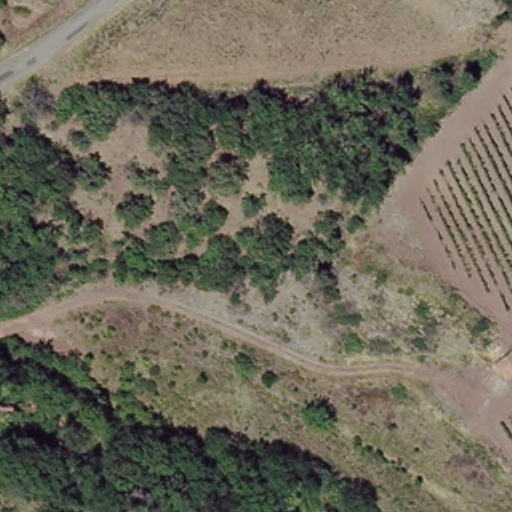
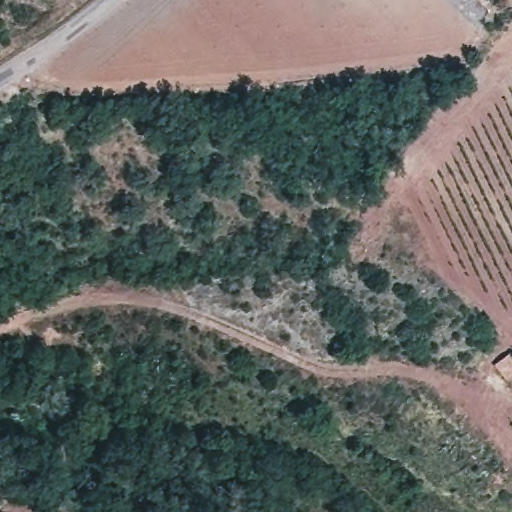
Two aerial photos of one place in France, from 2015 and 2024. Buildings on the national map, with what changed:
unchanged [(512,353),(512,374),(502,380),(491,361),(510,350),(512,353)]

